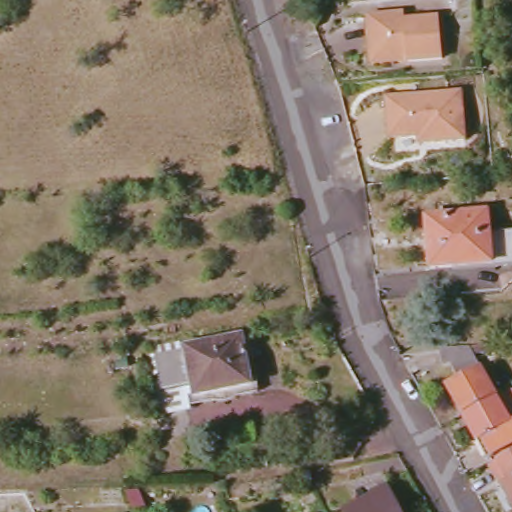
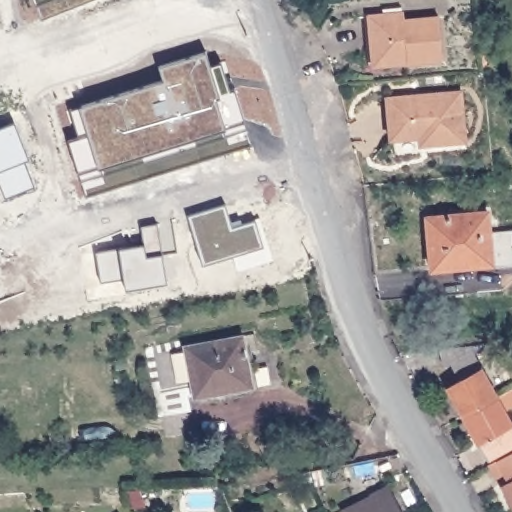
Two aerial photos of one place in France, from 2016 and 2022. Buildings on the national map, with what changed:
new [(36,0),(97,0),(43,20),(36,0)]
unchanged [(371,63),(366,19),(402,15),(402,22),(436,19),(441,62),(406,66),(372,70),(371,63)]
new [(88,196),(66,142),(78,137),(71,112),(163,82),(159,66),(207,49),(211,69),(228,63),(255,146),(88,196)]
unchanged [(417,141),(391,145),(387,101),(459,95),(464,144),(434,147),(419,149),(417,141)]
new [(7,199),(0,186),(0,128),(14,123),(35,189),(7,199)]
new [(189,219),(225,207),(231,232),(254,223),(264,249),(204,266),(189,219)]
unchanged [(486,215),(487,236),(512,234),(512,265),(494,266),(430,271),(426,220),(486,215)]
new [(127,293),(125,281),(100,285),(94,252),(144,249),(141,226),(157,225),(167,287),(127,293)]
unchanged [(182,345),(244,333),(254,390),(193,401),(182,345)]
unchanged [(449,391),(457,386),(451,370),(442,371),(440,354),(469,351),(496,401),(474,412),(462,419),(449,391)]
unchanged [(474,412),(496,401),(510,425),(512,425),(512,448),(485,465),(462,419),(474,412)]
unchanged [(512,457),(512,512),(511,512),(487,470),(512,457)]
unchanged [(397,512),(352,512),(370,503),(367,498),(386,490),(397,512)]

